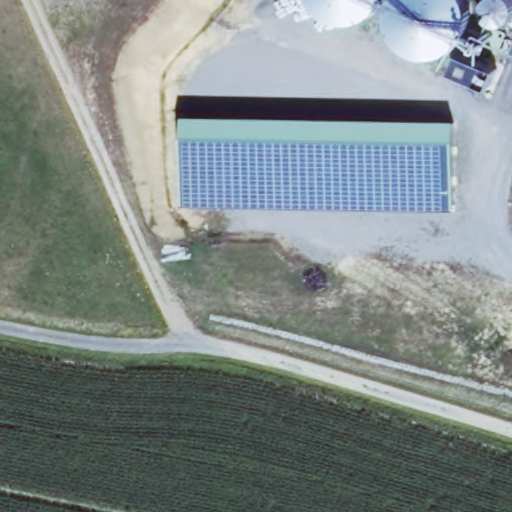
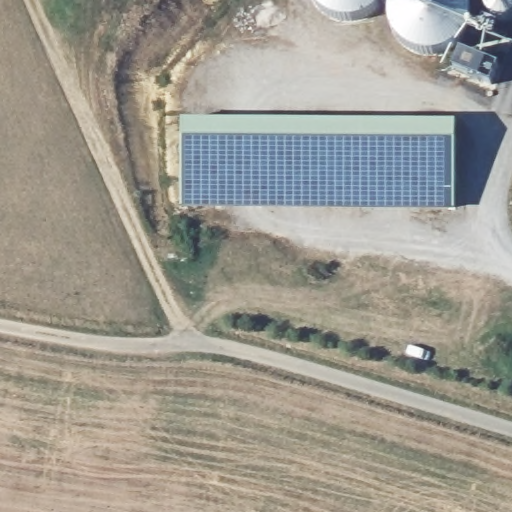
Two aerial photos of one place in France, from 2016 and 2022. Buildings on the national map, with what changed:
unchanged [(472,18),(472,26),(464,38),(452,49),(440,55),(423,53),(408,47),(397,39),(390,21),(389,5),(383,1),(370,15),(361,19),(345,20),(333,16),(323,10),(314,2),(313,0),(471,0),(472,10),(472,18)]
unchanged [(512,24),(502,25),(495,22),(488,14),(487,5),(488,0),(512,0),(512,23),(512,24)]
unchanged [(456,119),(454,208),(181,205),(184,117),(456,119)]

